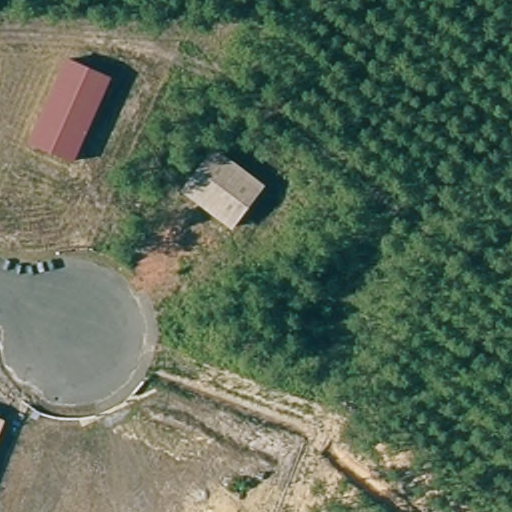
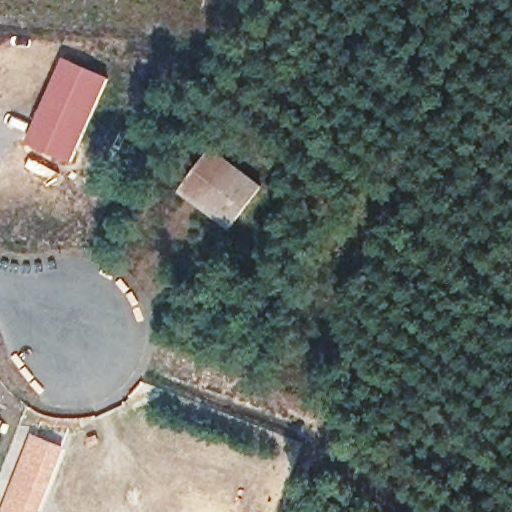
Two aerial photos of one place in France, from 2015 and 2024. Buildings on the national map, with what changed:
unchanged [(112,79),(75,162),(32,142),(69,59),(112,79)]
unchanged [(265,187),(233,228),(185,192),(216,150),(265,187)]
unchanged [(2,420),(0,426),(0,419),(2,420)]
new [(66,445),(41,512),(2,512),(34,434),(66,445)]

